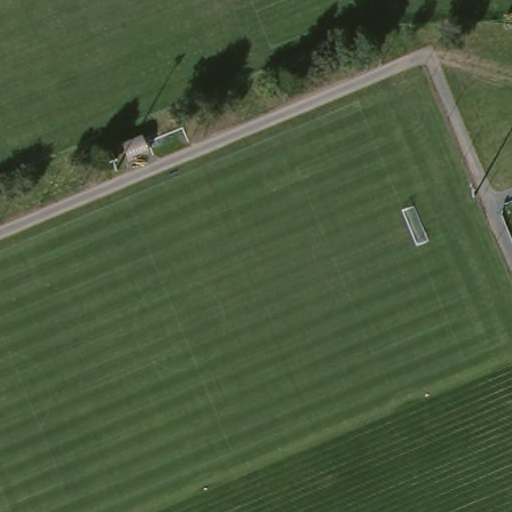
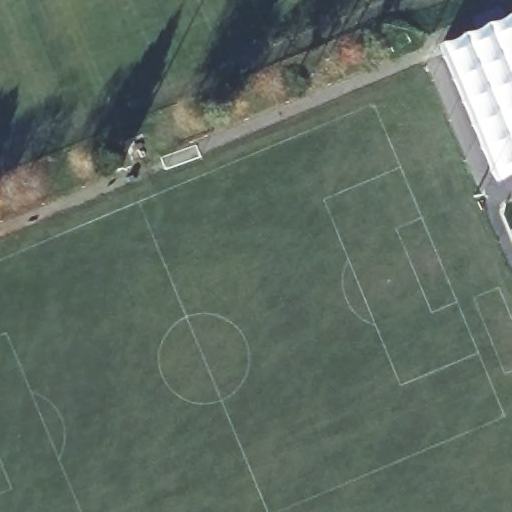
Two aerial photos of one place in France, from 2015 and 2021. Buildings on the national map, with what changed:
new [(433,46),(512,13),(512,175),(492,183),(433,46)]

